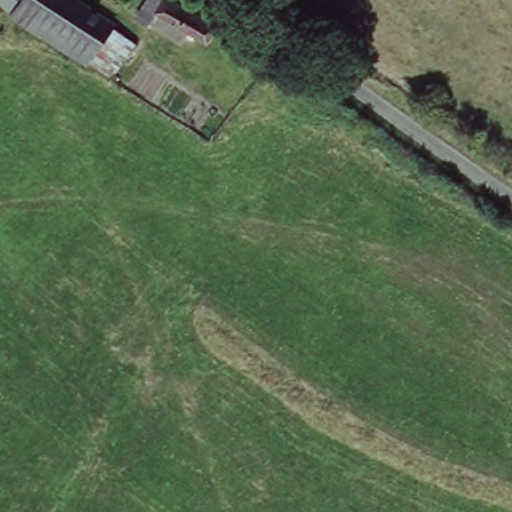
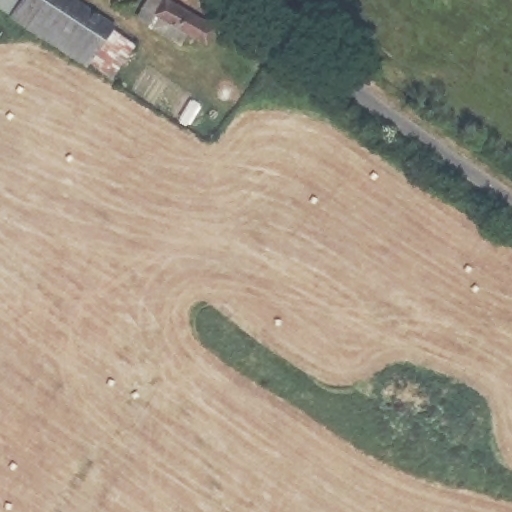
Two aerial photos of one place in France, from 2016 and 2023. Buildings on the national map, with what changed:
unchanged [(89,70),(0,6),(0,0),(66,0),(114,36),(89,70)]
unchanged [(163,16),(149,5),(152,0),(175,0),(218,31),(206,49),(163,16)]

